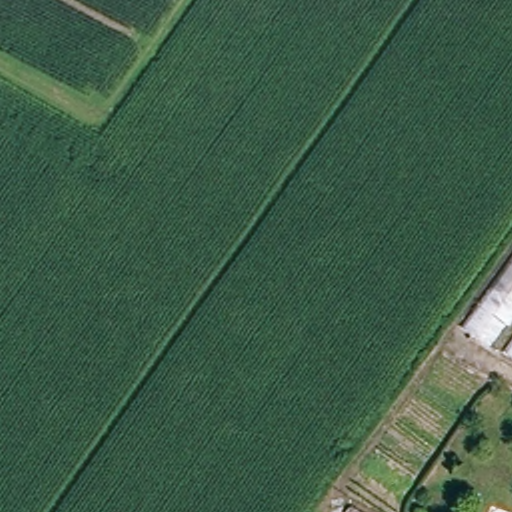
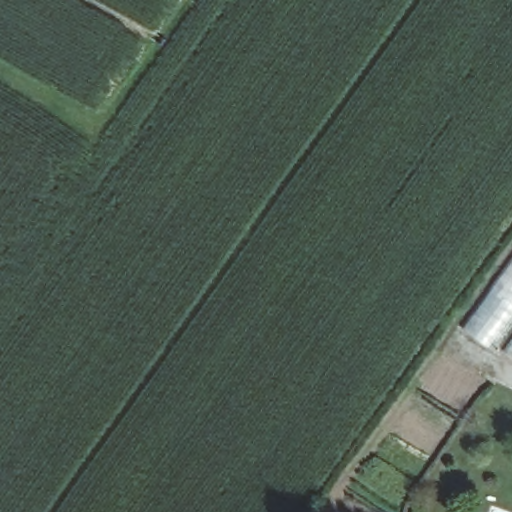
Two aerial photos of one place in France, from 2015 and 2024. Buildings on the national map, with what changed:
unchanged [(512,256),(512,358),(463,329),(512,256)]

